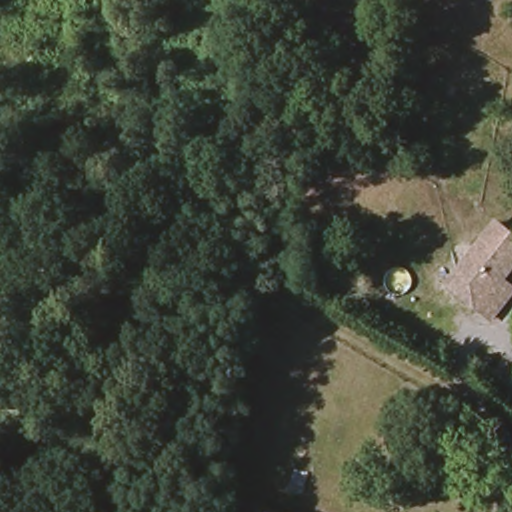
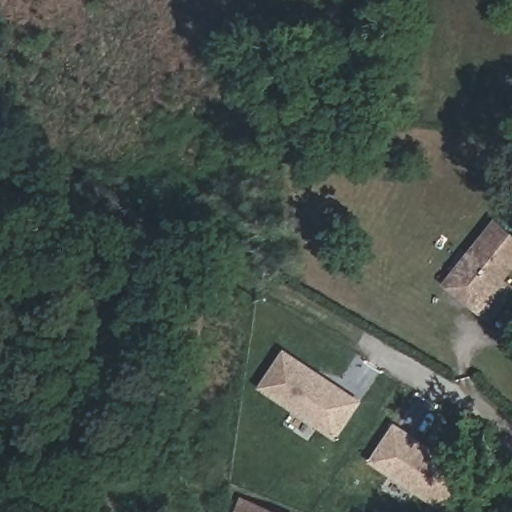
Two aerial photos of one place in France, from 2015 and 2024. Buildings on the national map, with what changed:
unchanged [(459,279),(494,230),(512,243),(512,260),(498,280),(512,292),(493,318),(478,307),(453,288),(459,279)]
new [(287,353),(359,402),(337,436),(264,387),(287,353)]
new [(398,426),(471,475),(448,509),(374,461),(398,426)]
unchanged [(276,512),(243,512),(248,501),(276,512)]

